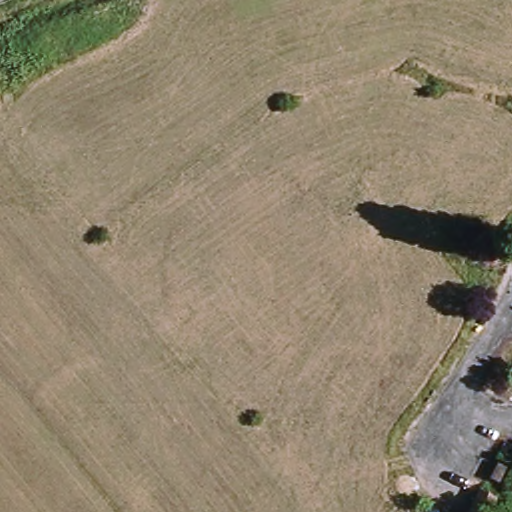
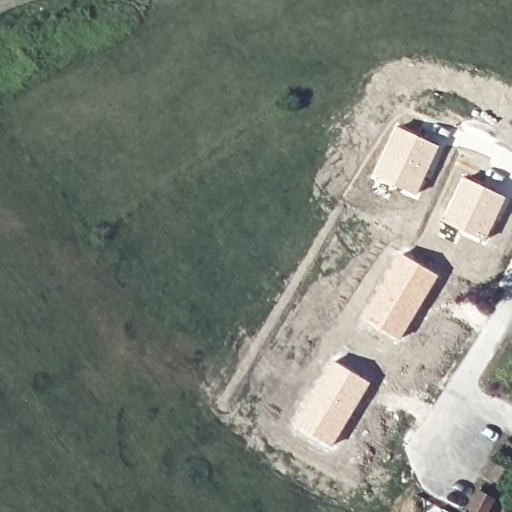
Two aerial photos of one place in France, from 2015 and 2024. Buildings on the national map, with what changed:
new [(396,126),(440,145),(417,196),(371,176),(396,126)]
new [(462,175),(507,197),(485,242),(440,221),(462,175)]
new [(400,252),(440,275),(400,340),(362,317),(400,252)]
new [(332,360),(371,382),(332,447),(292,423),(332,360)]
unchanged [(501,466),(512,471),(512,474),(505,487),(493,482),(501,466)]
unchanged [(481,491),(497,500),(490,512),(469,512),(481,491)]

